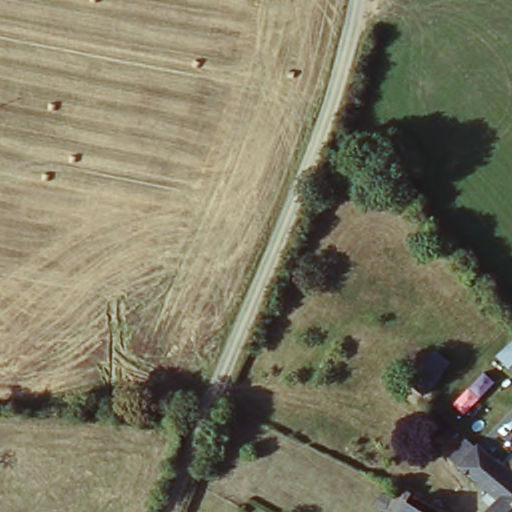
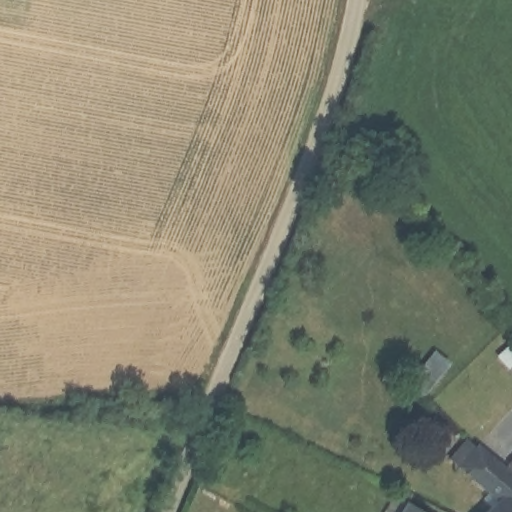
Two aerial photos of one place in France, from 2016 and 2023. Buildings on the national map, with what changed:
unchanged [(457,450),(478,430),(484,437),(489,434),(505,451),(512,459),(512,512),(484,512),(498,498),(457,450)]
unchanged [(414,510),(417,512),(393,512),(404,492),(419,501),(414,510)]

